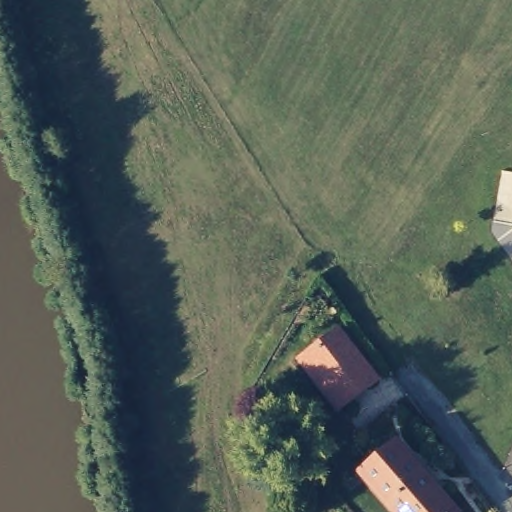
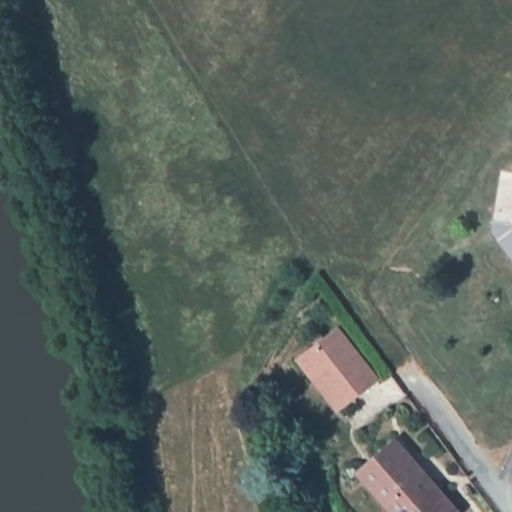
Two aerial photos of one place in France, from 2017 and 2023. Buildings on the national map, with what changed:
unchanged [(512,207),(512,222),(510,219),(512,207)]
unchanged [(305,363),(299,357),(306,350),(334,324),(336,327),(374,363),(346,392),(340,398),(305,363)]
unchanged [(386,446),(447,506),(440,512),(390,512),(356,479),(386,446)]

